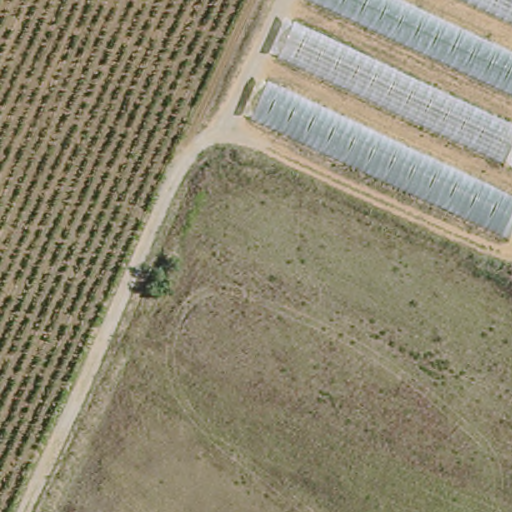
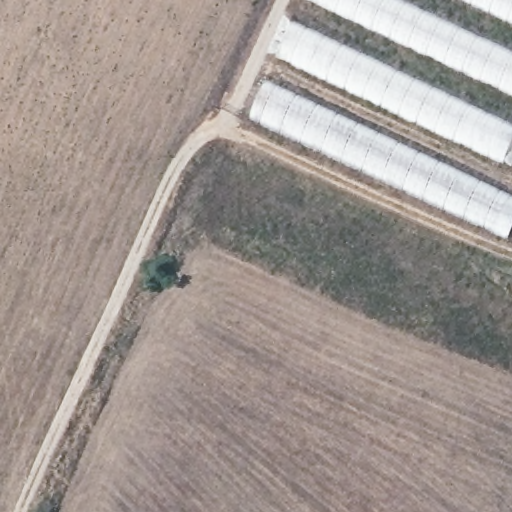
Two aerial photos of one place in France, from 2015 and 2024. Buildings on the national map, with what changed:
unchanged [(512,181),(507,192),(512,194),(512,243),(240,116),(292,0),(512,0),(512,181)]

